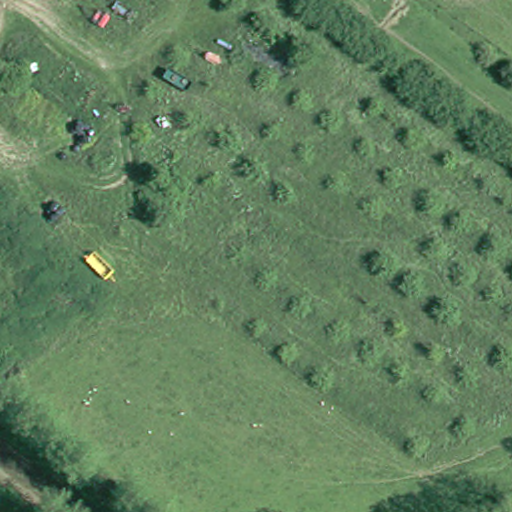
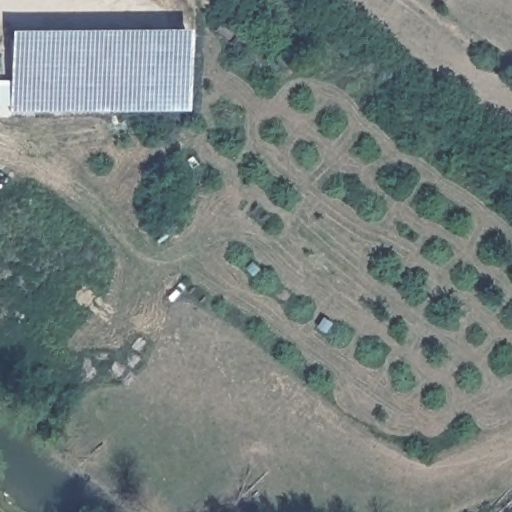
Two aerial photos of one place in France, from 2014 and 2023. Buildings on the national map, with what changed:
new [(187,110),(10,111),(9,30),(187,29),(187,110)]

